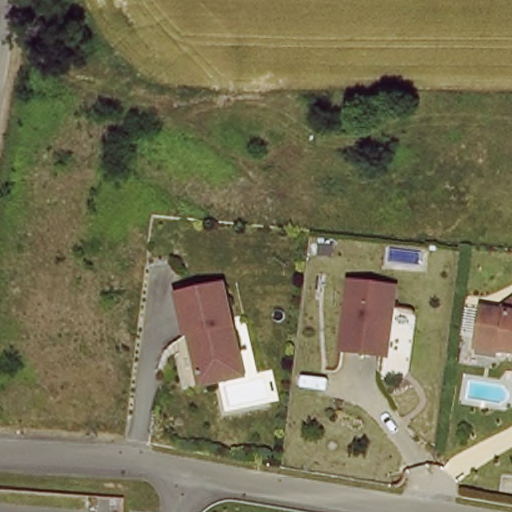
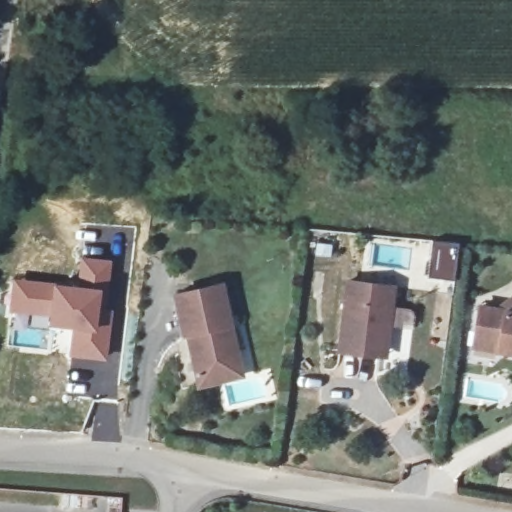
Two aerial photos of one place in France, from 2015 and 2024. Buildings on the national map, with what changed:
new [(80,289),(83,262),(112,265),(107,312),(113,312),(107,358),(72,354),(77,325),(52,323),(53,315),(10,309),(15,280),(80,289)]
unchanged [(382,355),(345,349),(356,280),(399,287),(396,308),(393,326),(389,356),(382,355)]
unchanged [(205,381),(204,374),(194,329),(190,330),(182,291),(228,282),(242,348),(247,372),(205,381)]
unchanged [(483,307),(509,312),(511,302),(512,301),(512,353),(499,350),(476,347),(478,337),(483,307)]

